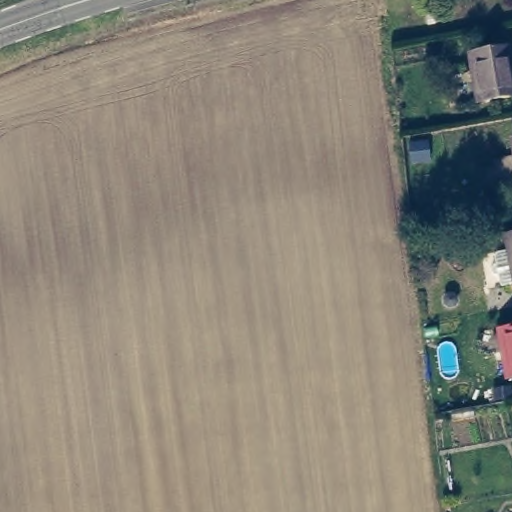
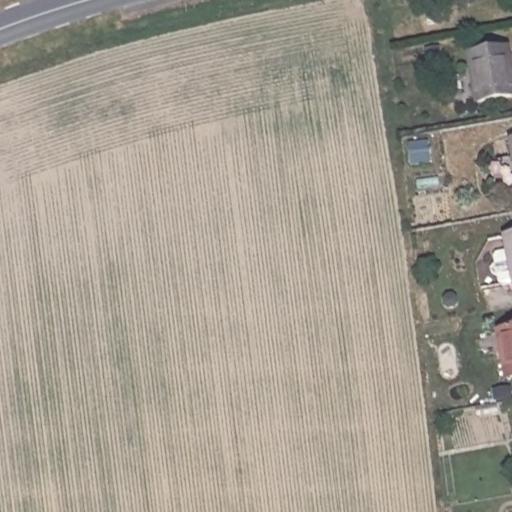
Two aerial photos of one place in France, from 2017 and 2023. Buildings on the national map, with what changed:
unchanged [(512,83),(512,94),(474,101),(466,54),(506,47),(512,83)]
unchanged [(512,171),(507,142),(512,141),(512,171)]
unchanged [(500,280),(493,280),(490,261),(494,257),(494,252),(508,248),(508,234),(512,233),(512,283),(502,285),(500,280)]
unchanged [(512,379),(503,380),(494,329),(512,326),(512,379)]

